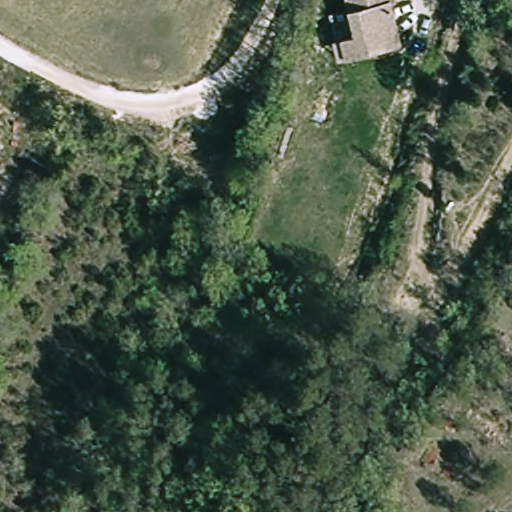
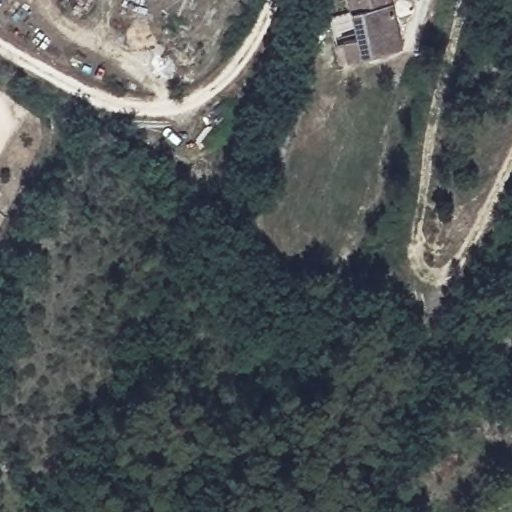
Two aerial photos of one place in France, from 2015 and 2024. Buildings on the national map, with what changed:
unchanged [(337,40),(353,36),(344,0),(387,0),(398,47),(344,60),(336,61),(331,42),(337,40)]

